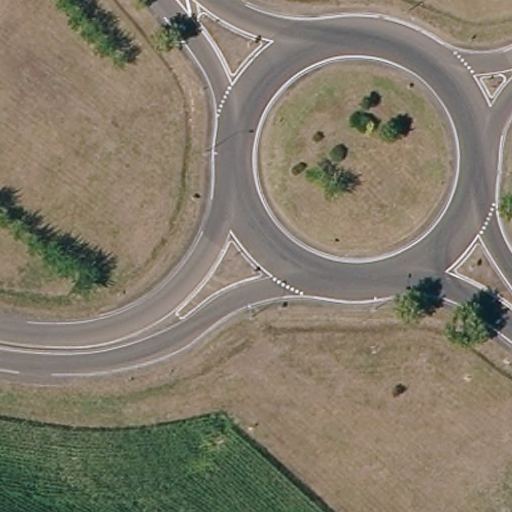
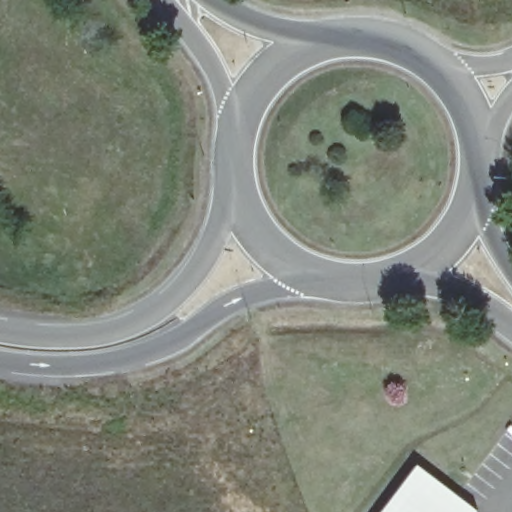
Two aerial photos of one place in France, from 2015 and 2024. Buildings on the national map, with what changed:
new [(475,512),(379,512),(418,462),(478,508),(475,512)]

